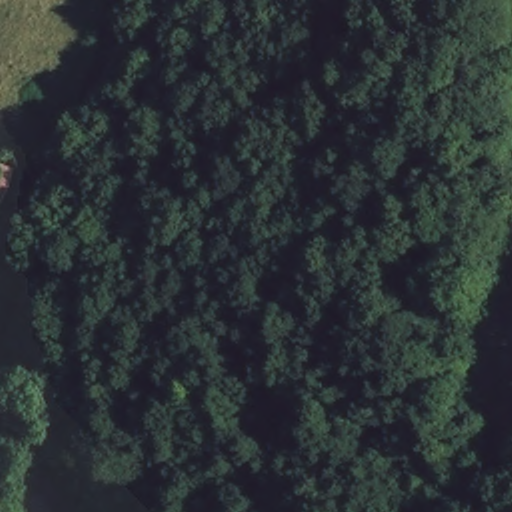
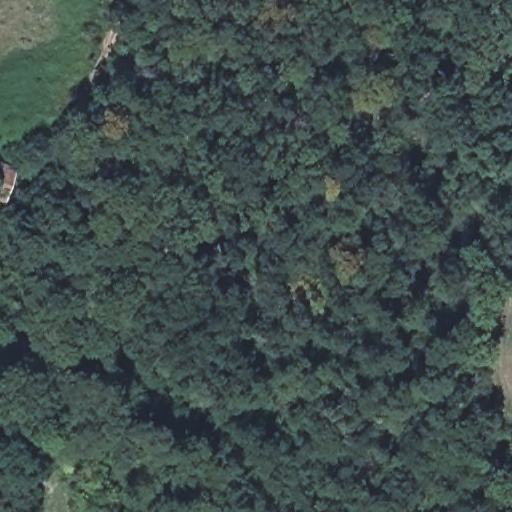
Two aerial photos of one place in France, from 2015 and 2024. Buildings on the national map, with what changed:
unchanged [(9,171),(0,194),(0,167),(9,171)]

